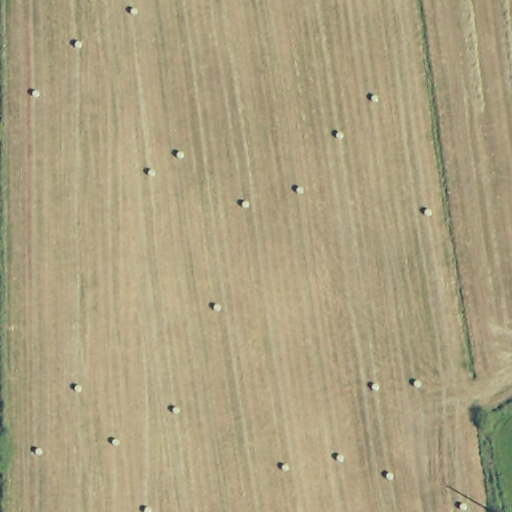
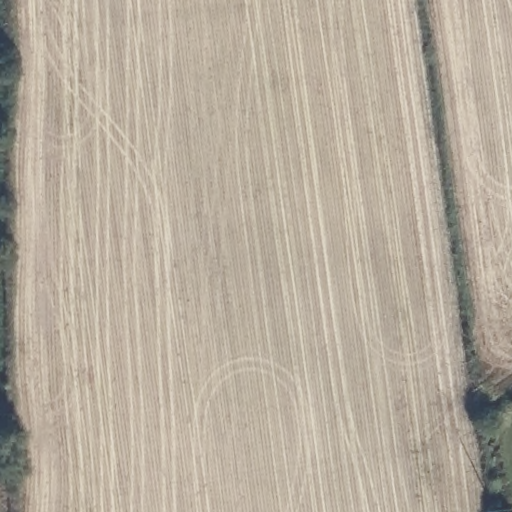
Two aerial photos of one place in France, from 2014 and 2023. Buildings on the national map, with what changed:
[]

